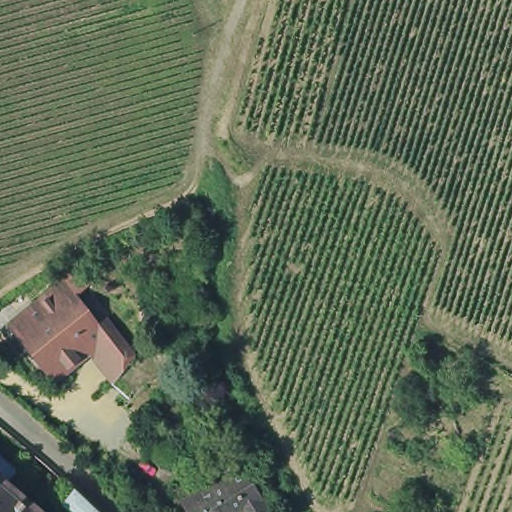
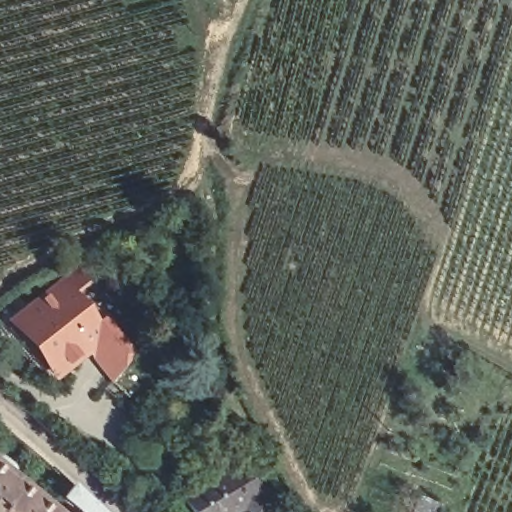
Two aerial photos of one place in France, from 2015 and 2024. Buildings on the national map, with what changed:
unchanged [(63,280),(97,321),(106,312),(135,352),(110,381),(90,355),(52,381),(7,320),(63,280)]
unchanged [(7,471),(10,475),(22,487),(15,497),(33,512),(0,512),(0,465),(7,471)]
unchanged [(238,471),(258,504),(257,505),(261,512),(181,512),(178,508),(238,471)]
unchanged [(88,512),(64,512),(57,506),(67,493),(88,512)]

